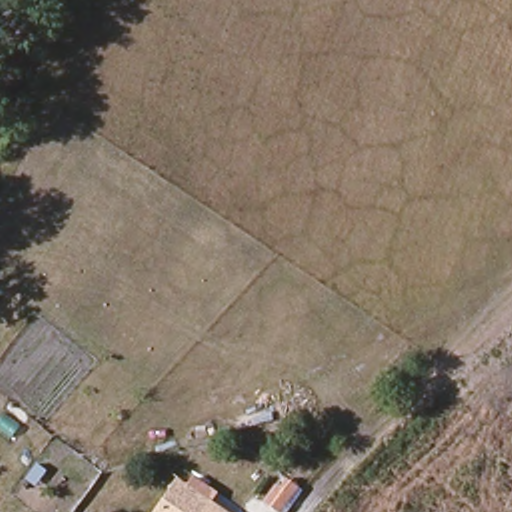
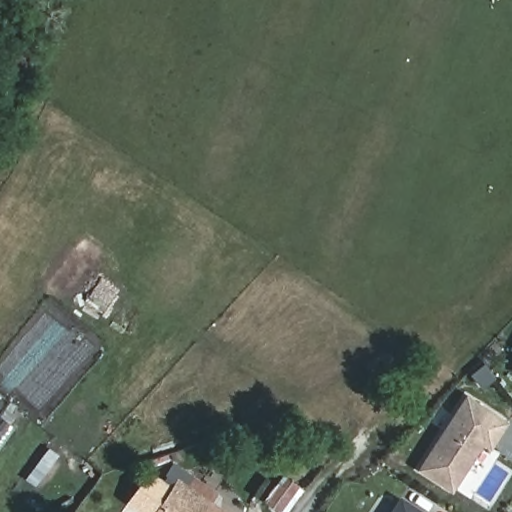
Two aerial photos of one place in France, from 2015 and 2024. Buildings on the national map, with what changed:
new [(418,468),(467,395),(508,422),(491,449),(482,445),(452,491),(418,468)]
new [(280,476),(299,491),(282,512),(263,497),(280,476)]
unchanged [(177,477),(226,512),(154,512),(177,477)]
new [(402,498),(422,512),(392,512),(402,498)]

